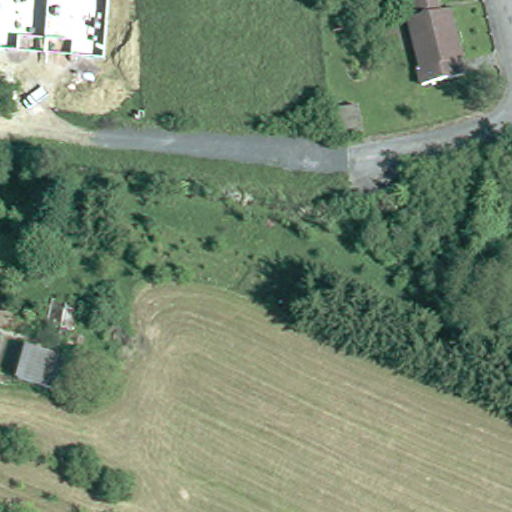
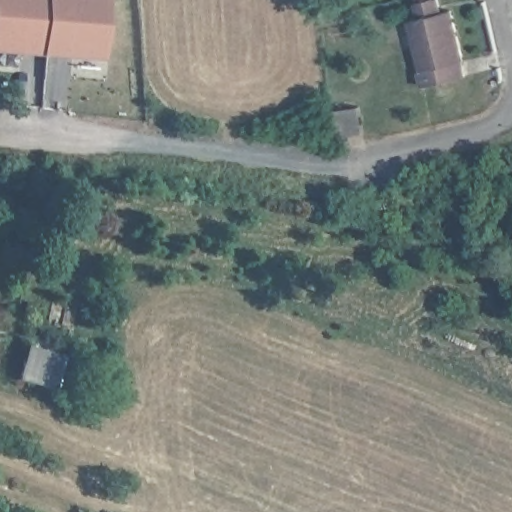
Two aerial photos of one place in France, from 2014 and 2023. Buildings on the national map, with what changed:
new [(0,53),(0,0),(110,0),(105,61),(0,53)]
unchanged [(468,61),(466,61),(470,76),(427,86),(427,71),(424,71),(414,21),(425,17),(420,2),(430,0),(443,0),(445,12),(455,10),(468,61)]
unchanged [(357,138),(346,140),(334,142),(327,113),(340,111),(350,110),(357,138)]
unchanged [(24,380),(33,346),(57,352),(68,356),(59,390),(48,387),(24,380)]

